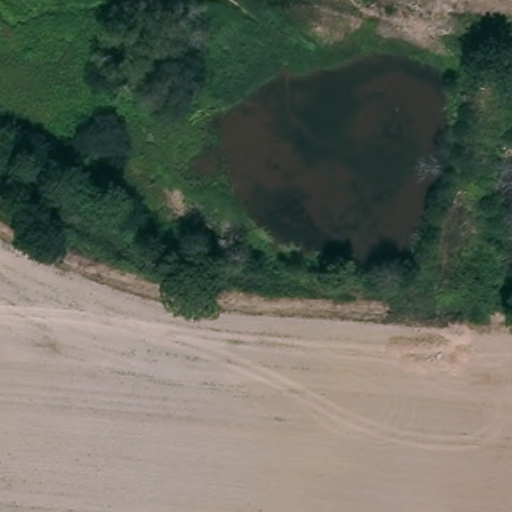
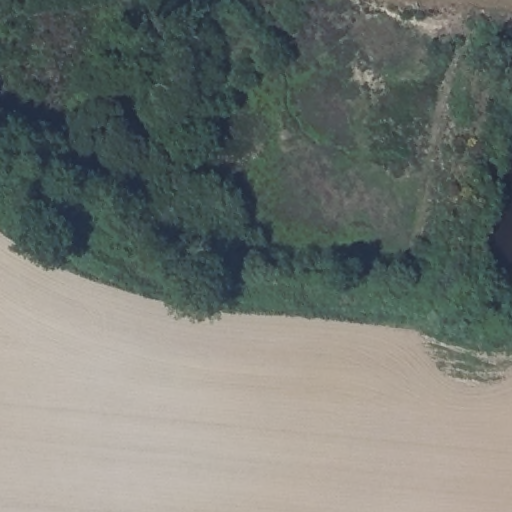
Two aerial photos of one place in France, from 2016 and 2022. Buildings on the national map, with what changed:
[]

